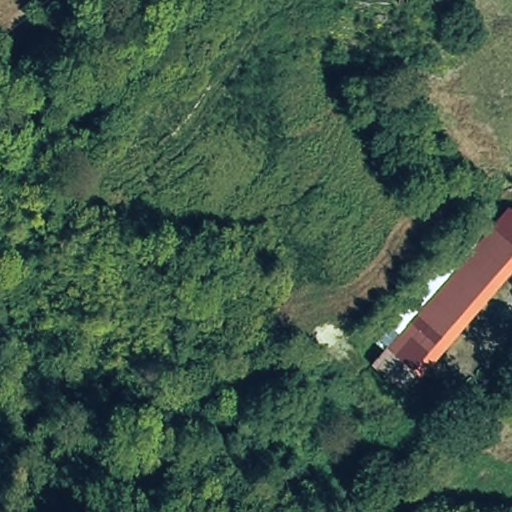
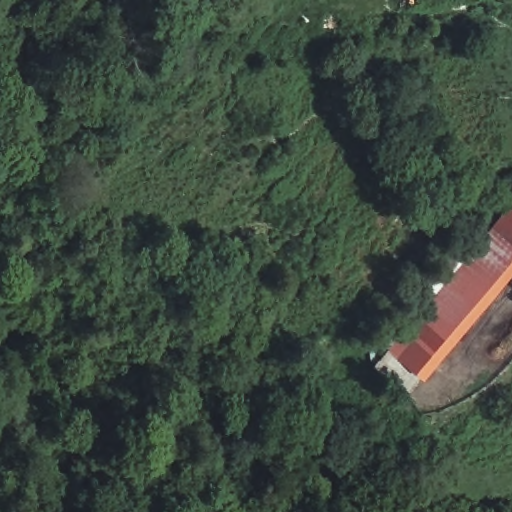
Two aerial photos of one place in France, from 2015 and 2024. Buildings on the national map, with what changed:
unchanged [(512,208),(512,242),(494,229),(512,208)]
unchanged [(512,242),(512,265),(408,397),(374,369),(494,229),(512,242)]

